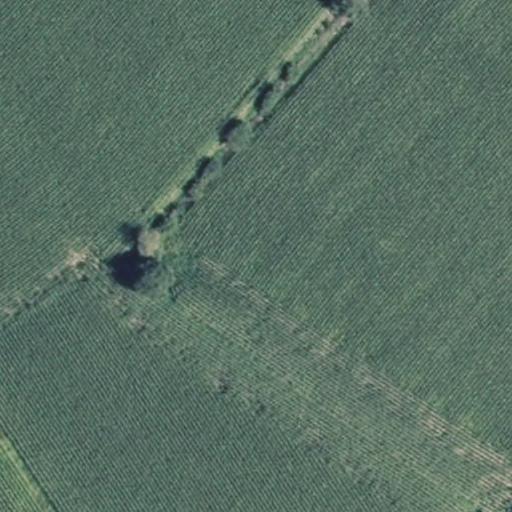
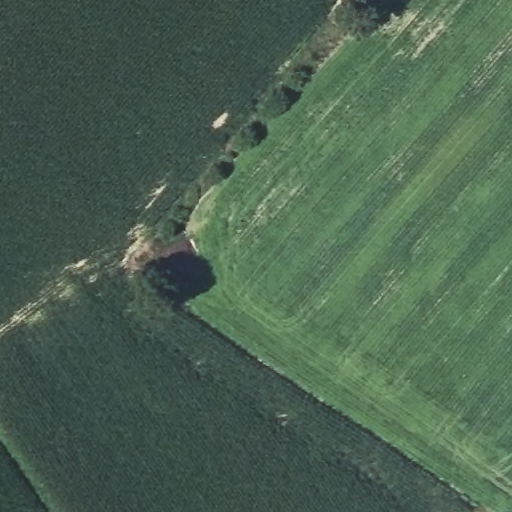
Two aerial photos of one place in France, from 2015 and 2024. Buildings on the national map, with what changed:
[]

